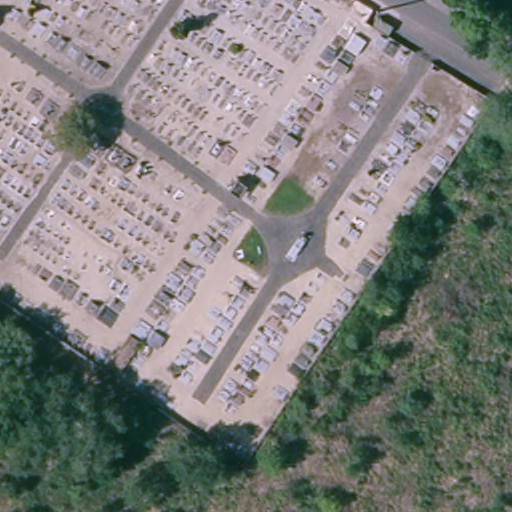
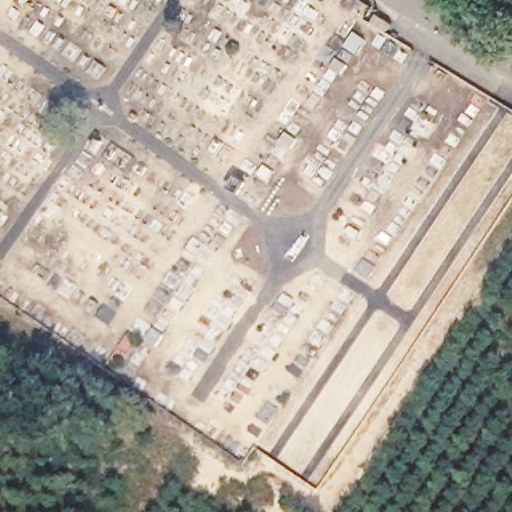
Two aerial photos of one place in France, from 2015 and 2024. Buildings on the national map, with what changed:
unchanged [(385,33),(370,25),(375,17),(388,25),(385,33)]

